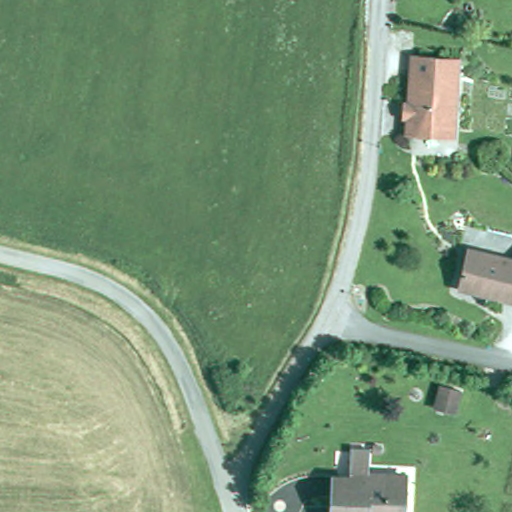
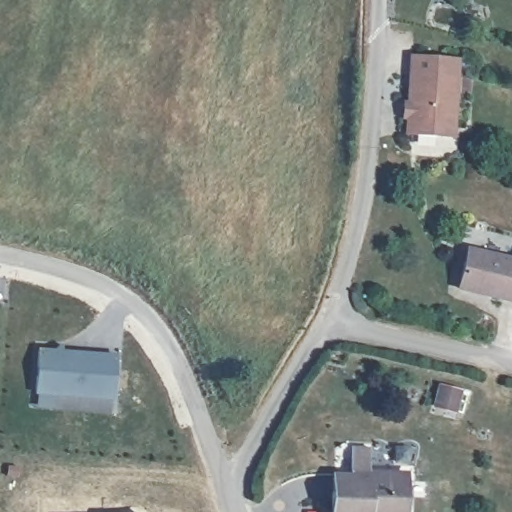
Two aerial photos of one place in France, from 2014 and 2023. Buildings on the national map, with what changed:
unchanged [(410,138),(415,58),(460,61),(455,141),(410,138)]
unchanged [(468,292),(460,278),(468,252),(512,262),(512,303),(468,292)]
new [(113,399),(35,394),(38,348),(117,353),(113,399)]
unchanged [(407,512),(336,512),(336,478),(370,478),(370,471),(407,473),(407,512)]
new [(130,510),(130,512),(49,512),(48,510),(130,510)]

